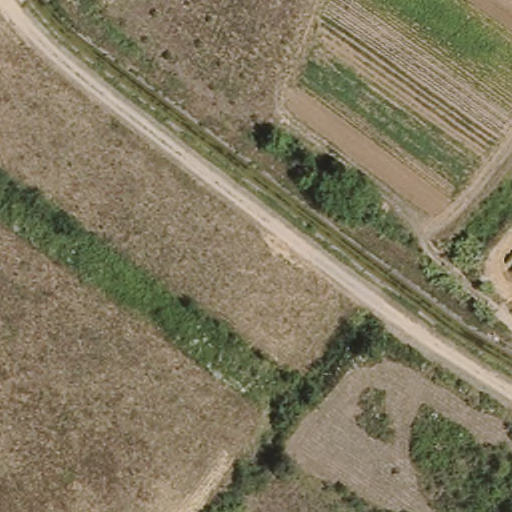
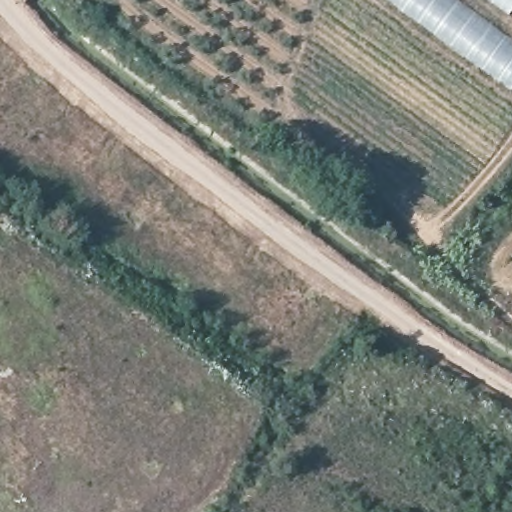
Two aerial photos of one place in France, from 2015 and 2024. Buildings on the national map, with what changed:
new [(512,89),(389,0),(461,0),(512,37),(512,89)]
new [(490,0),(512,0),(512,12),(510,15),(490,0)]

